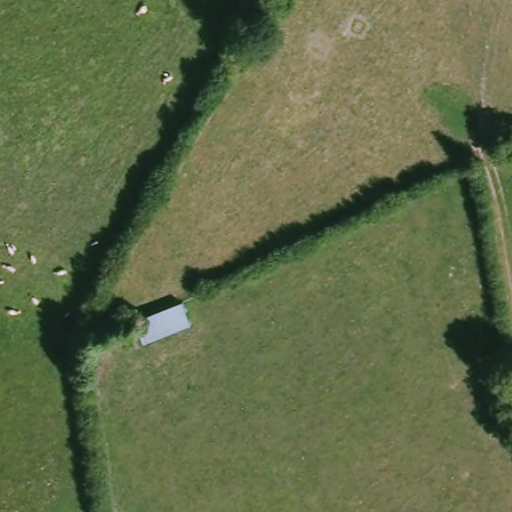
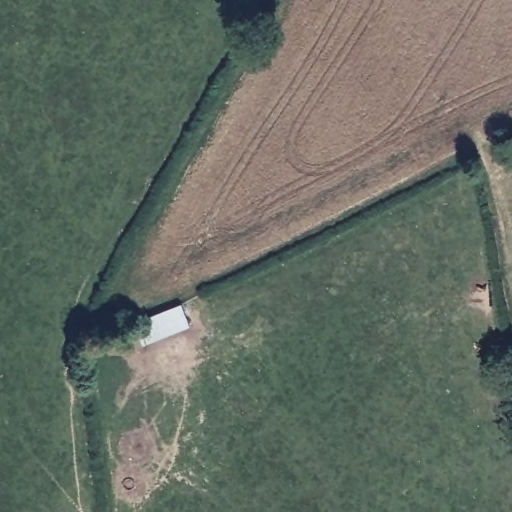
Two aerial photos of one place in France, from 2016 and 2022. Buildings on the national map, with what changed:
unchanged [(188,299),(197,324),(144,346),(137,322),(188,299)]

